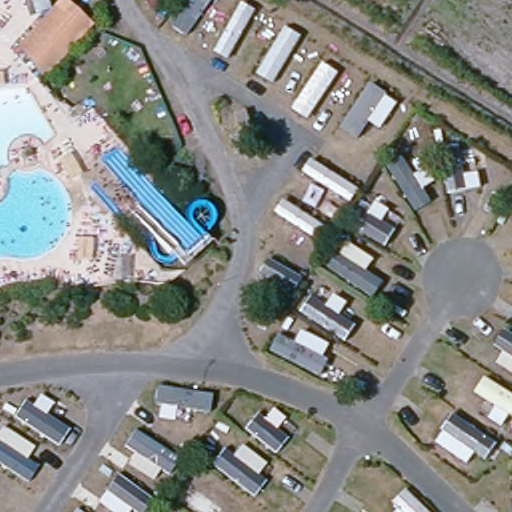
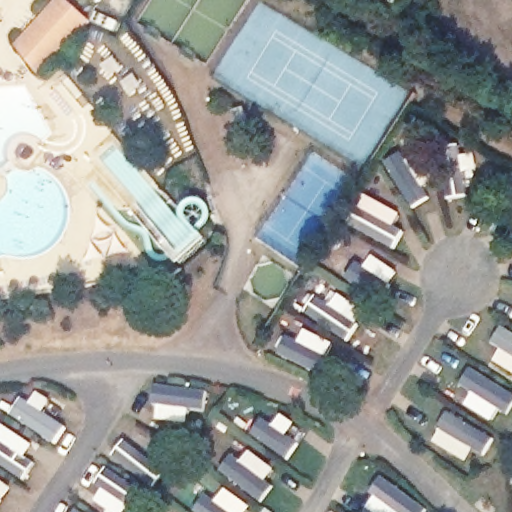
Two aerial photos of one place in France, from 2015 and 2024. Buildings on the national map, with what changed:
unchanged [(68,0),(94,22),(43,80),(17,50),(61,0),(68,0)]

